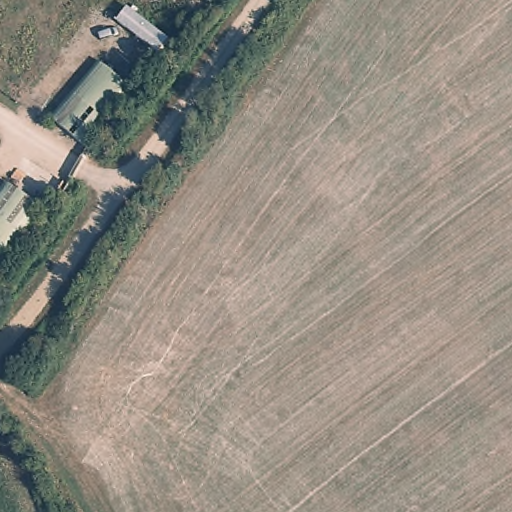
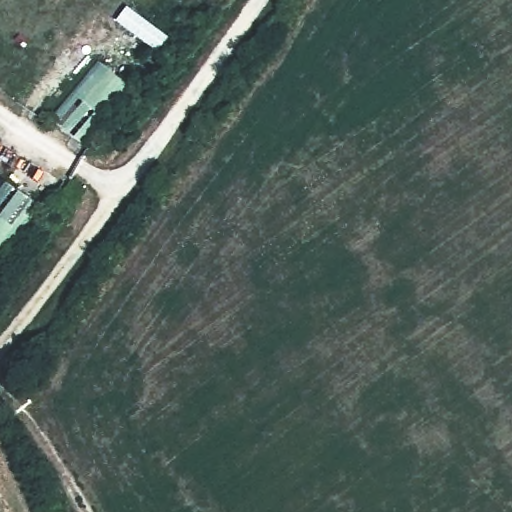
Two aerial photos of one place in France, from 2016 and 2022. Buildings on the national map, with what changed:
unchanged [(84,145),(50,120),(97,60),(130,87),(84,145)]
unchanged [(0,262),(0,185),(3,181),(40,205),(0,262)]

